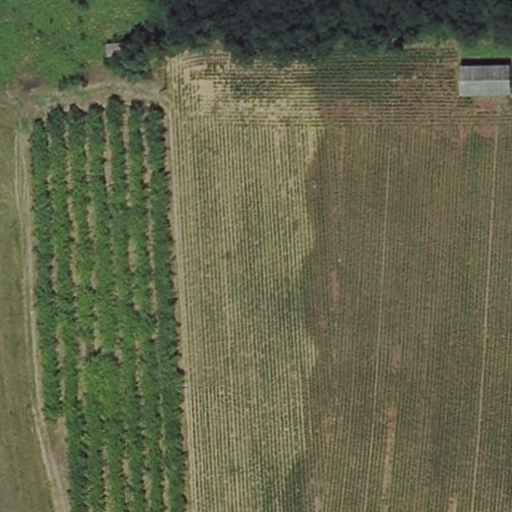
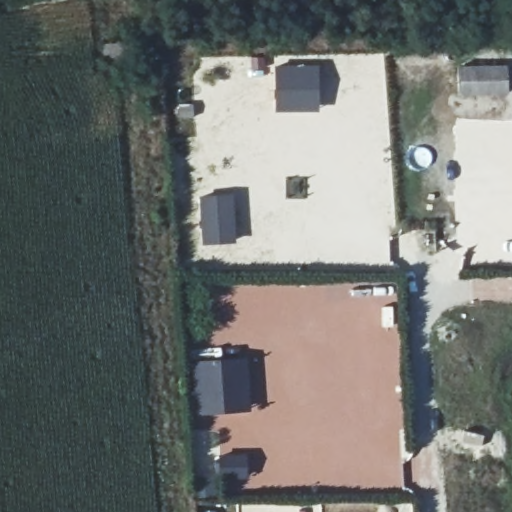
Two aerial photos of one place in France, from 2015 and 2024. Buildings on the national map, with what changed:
new [(318,66),(319,113),(275,114),(275,67),(318,66)]
unchanged [(512,81),(512,96),(465,98),(464,70),(511,66),(512,81)]
new [(234,193),(237,242),(202,246),(199,195),(234,193)]
new [(246,356),(250,411),(196,416),(192,364),(246,356)]
new [(245,457),(246,477),(240,477),(220,477),(220,457),(240,457),(245,457)]

